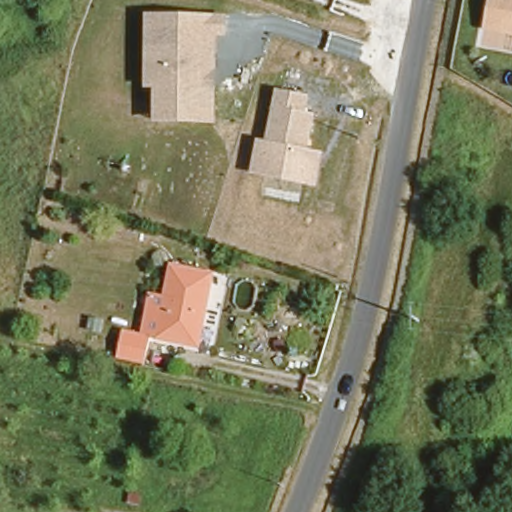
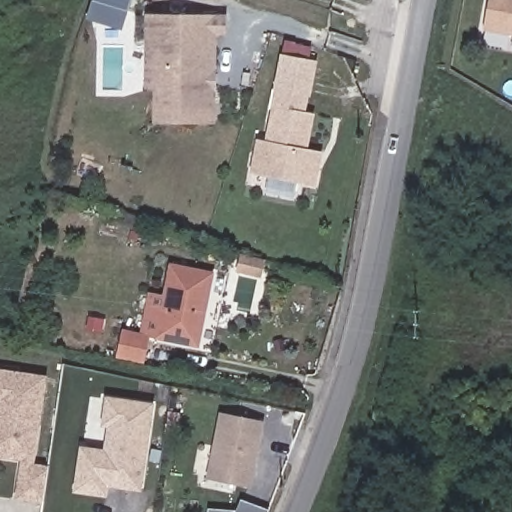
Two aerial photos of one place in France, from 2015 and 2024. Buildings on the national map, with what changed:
new [(87,19),(93,0),(132,0),(122,30),(87,19)]
unchanged [(486,30),(491,0),(512,0),(512,35),(486,30)]
unchanged [(229,14),(228,38),(218,38),(217,125),(155,124),(156,86),(146,86),(146,13),(229,14)]
new [(282,55),(285,39),(312,47),(309,59),(318,62),(310,95),(277,88),(282,55)]
unchanged [(267,139),(277,88),(310,95),(307,112),(316,114),(310,149),(325,151),(318,187),(250,174),(257,138),(267,139)]
unchanged [(197,348),(147,340),(139,363),(113,357),(118,324),(139,326),(144,288),(160,292),(166,261),(213,269),(197,348)]
new [(0,458),(0,368),(48,375),(34,464),(49,466),(43,505),(14,501),(19,461),(0,458)]
new [(106,498),(72,493),(80,444),(103,448),(107,428),(100,426),(105,394),(155,403),(143,491),(109,487),(106,498)]
new [(248,485),(208,475),(223,412),(264,422),(248,485)]

